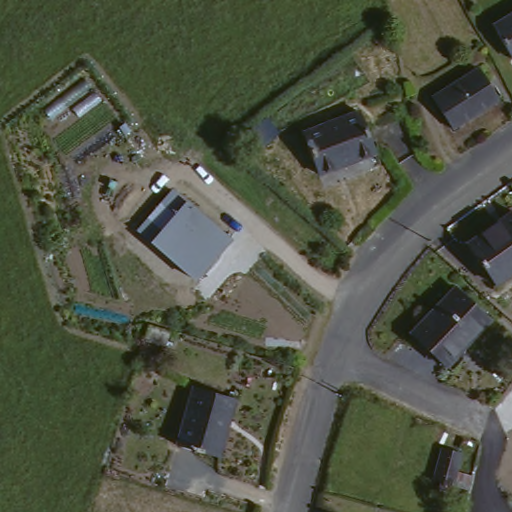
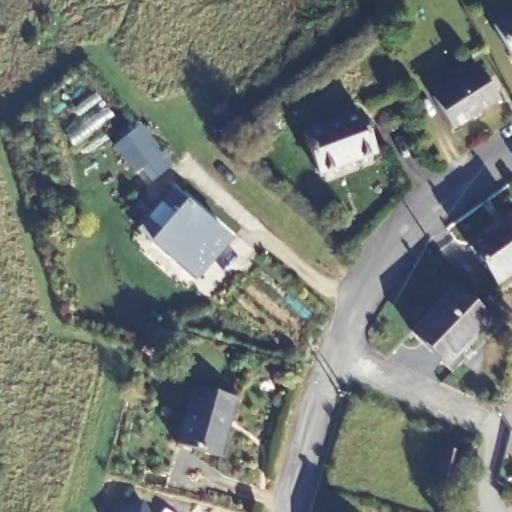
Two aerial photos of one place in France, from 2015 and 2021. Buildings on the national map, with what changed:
unchanged [(512,16),(512,64),(509,65),(488,30),(512,16)]
unchanged [(433,97),(478,69),(497,100),(453,129),(433,97)]
unchanged [(303,132),(358,112),(373,155),(318,175),(303,132)]
new [(119,140),(139,124),(172,163),(150,181),(119,140)]
unchanged [(233,239),(197,282),(136,230),(173,187),(233,239)]
unchanged [(463,243),(484,228),(488,233),(511,217),(512,219),(512,268),(490,283),(463,243)]
unchanged [(406,337),(450,292),(484,325),(440,370),(406,337)]
unchanged [(176,444),(193,385),(235,398),(218,457),(176,444)]
unchanged [(443,448),(460,453),(453,485),(434,480),(443,448)]

